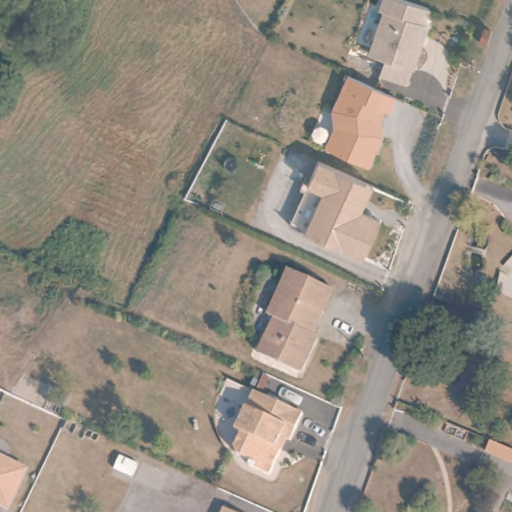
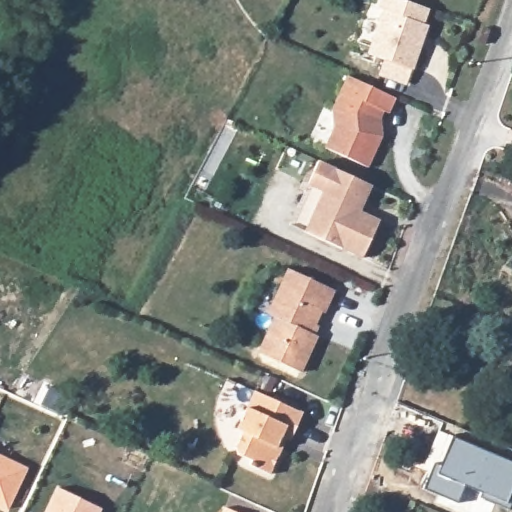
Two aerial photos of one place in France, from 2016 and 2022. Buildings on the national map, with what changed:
unchanged [(426,25),(428,26),(407,86),(377,77),(383,62),(366,55),(382,12),(377,9),(380,0),(398,0),(430,10),(426,25)]
unchanged [(394,99),(382,123),(383,139),(368,170),(323,149),(332,129),(331,111),(347,76),(394,99)]
unchanged [(373,188),(362,213),(380,222),(362,261),(287,225),(305,183),(307,185),(317,161),(373,188)]
unchanged [(332,287),(313,334),(320,336),(303,372),(262,355),(277,317),(270,315),(288,269),(332,287)]
unchanged [(302,415),(290,442),(280,438),(275,450),(280,452),(269,478),(248,470),(251,462),(232,454),(240,436),(234,434),(251,393),(302,415)]
new [(512,464),(512,481),(512,482),(512,483),(512,496),(506,510),(477,499),(479,493),(461,487),(455,504),(421,490),(430,465),(437,467),(449,438),(512,464)]
unchanged [(5,509),(0,507),(0,458),(23,468),(5,509)]
new [(101,508),(99,512),(44,512),(56,488),(101,508)]
unchanged [(225,508),(233,512),(223,512),(225,508)]

